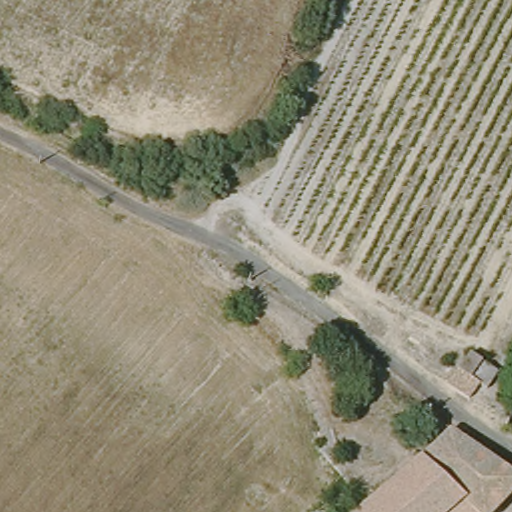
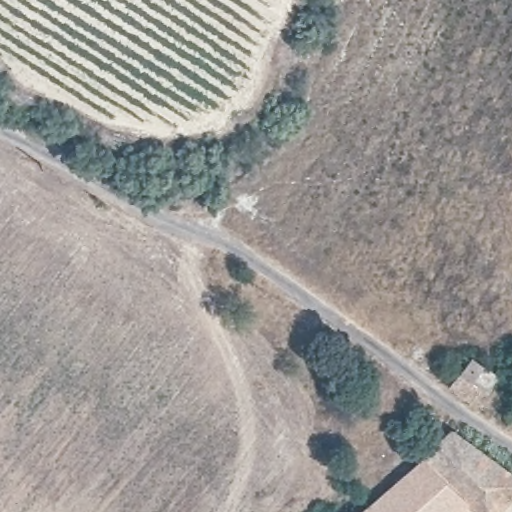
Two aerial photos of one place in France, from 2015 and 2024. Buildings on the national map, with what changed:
unchanged [(486,392),(475,385),(470,391),(451,379),(472,351),(500,372),(486,392)]
unchanged [(354,512),(448,428),(512,477),(512,492),(493,512),(354,512)]

